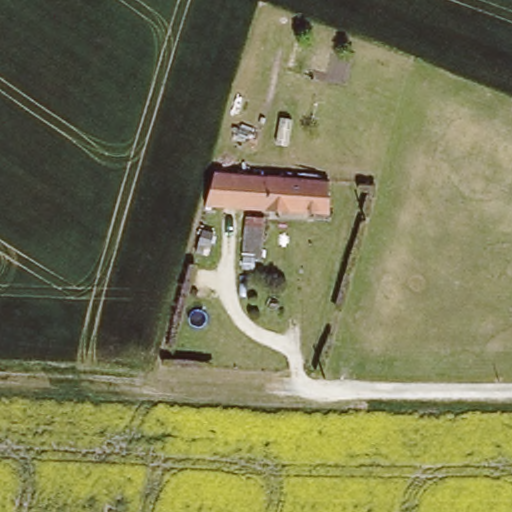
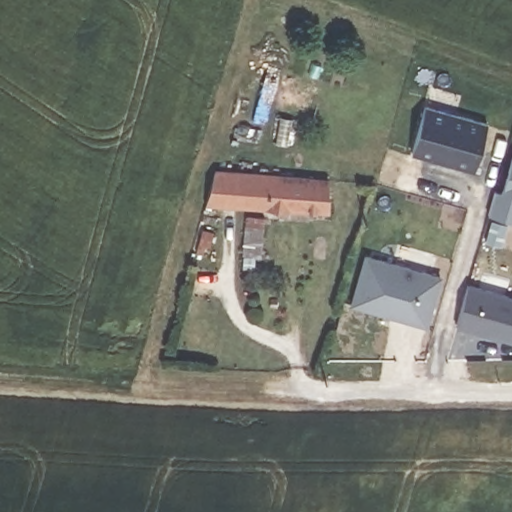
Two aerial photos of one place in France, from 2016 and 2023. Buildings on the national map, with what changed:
new [(424,105),(487,122),(475,171),(410,152),(424,105)]
new [(500,190),(512,150),(512,222),(486,214),(493,189),(500,190)]
unchanged [(330,170),(330,201),(307,201),(307,208),(278,208),(279,198),(205,193),(214,161),(330,170)]
unchanged [(243,246),(246,204),(264,206),(261,247),(243,246)]
new [(363,253),(441,275),(425,328),(348,306),(363,253)]
new [(512,296),(512,343),(454,326),(467,283),(512,296)]

